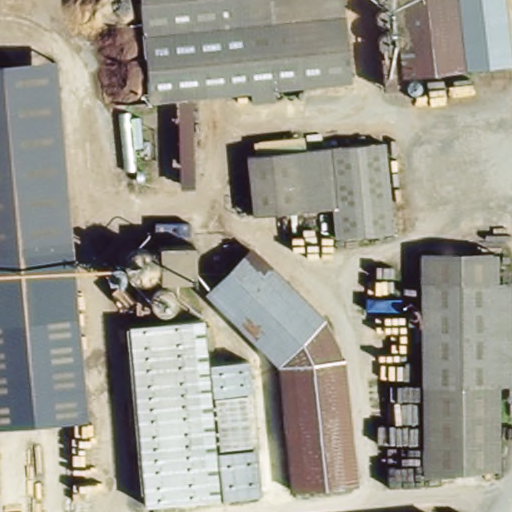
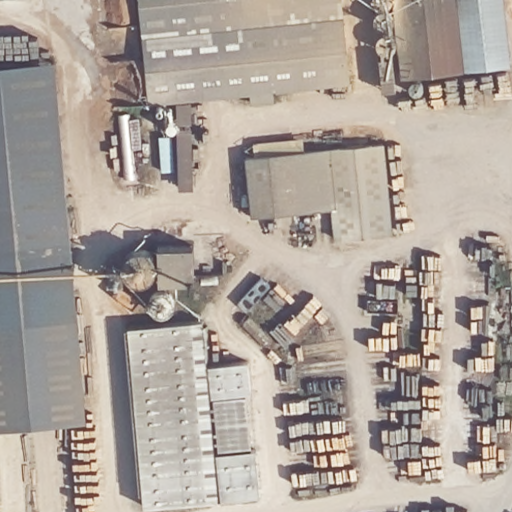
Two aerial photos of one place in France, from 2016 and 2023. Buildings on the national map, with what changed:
unchanged [(143,0),(342,0),(351,75),(153,98),(143,0)]
unchanged [(511,63),(465,67),(418,73),(420,82),(419,88),(415,91),(409,91),(406,85),(406,75),(401,76),(395,78),(395,87),(381,88),(373,0),(503,0),(511,63)]
unchanged [(75,246),(0,253),(0,64),(57,59),(75,246)]
unchanged [(240,107),(242,120),(226,123),(224,110),(240,107)]
unchanged [(385,139),(395,229),(336,235),(337,203),(330,147),(385,139)]
unchanged [(248,155),(330,147),(337,203),(253,216),(248,155)]
unchanged [(191,247),(195,283),(173,284),(175,307),(147,312),(145,290),(123,290),(122,245),(158,245),(191,247)]
unchanged [(0,426),(0,253),(75,246),(86,418),(0,426)]
demolished [(418,279),(418,251),(499,249),(500,280),(418,279)]
demolished [(418,279),(500,280),(510,280),(510,384),(498,385),(420,388),(418,279)]
demolished [(345,358),(356,484),(290,489),(278,361),(320,312),(345,358)]
unchanged [(126,324),(206,318),(210,390),(245,390),(249,441),(215,443),(219,497),(140,497),(126,324)]
unchanged [(251,357),(265,493),(219,497),(215,443),(249,441),(245,390),(210,390),(209,362),(251,357)]
demolished [(498,385),(501,467),(422,472),(420,388),(498,385)]

